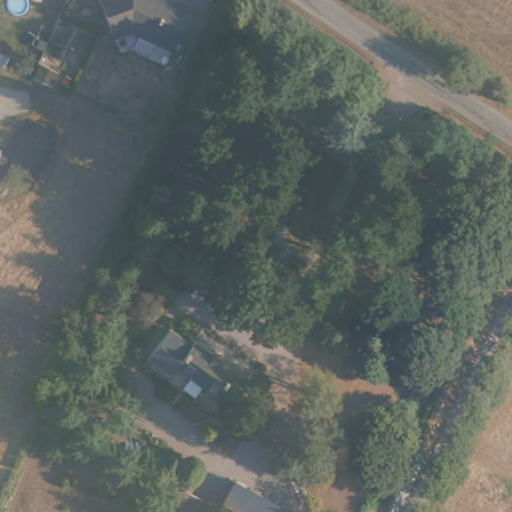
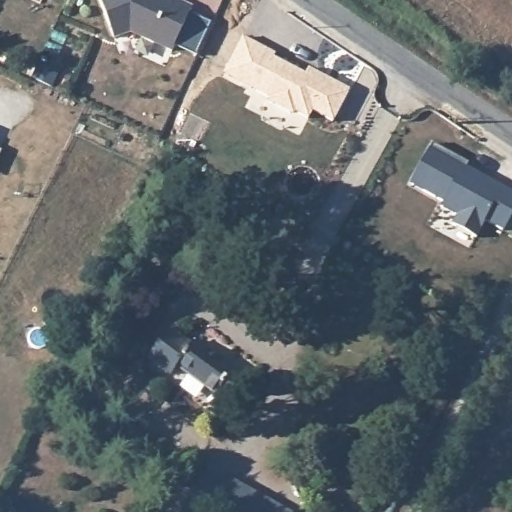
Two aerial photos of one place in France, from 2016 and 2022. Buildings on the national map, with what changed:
unchanged [(172,51),(130,31),(114,37),(100,0),(170,0),(175,2),(177,0),(192,7),(172,51)]
new [(275,55),(274,58),(306,75),(309,69),(329,80),(350,90),(333,122),(312,111),(309,119),(295,112),(290,113),(271,103),(269,98),(254,90),(255,87),(225,71),(243,37),(275,55)]
new [(469,163),(466,167),(490,180),(512,192),(512,214),(503,231),(485,221),(476,237),(452,225),(457,216),(441,207),(443,202),(409,184),(433,143),(469,163)]
unchanged [(0,149),(3,151),(0,157),(0,149)]
unchanged [(240,378),(253,387),(240,408),(187,370),(182,376),(160,360),(180,332),(202,347),(203,346),(243,374),(240,378)]
new [(233,481),(290,512),(240,512),(222,502),(233,481)]

